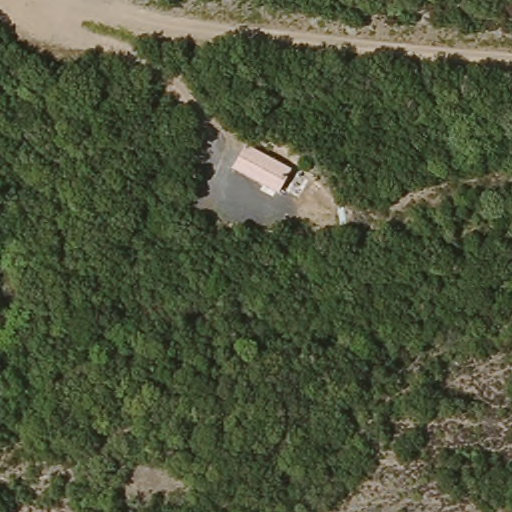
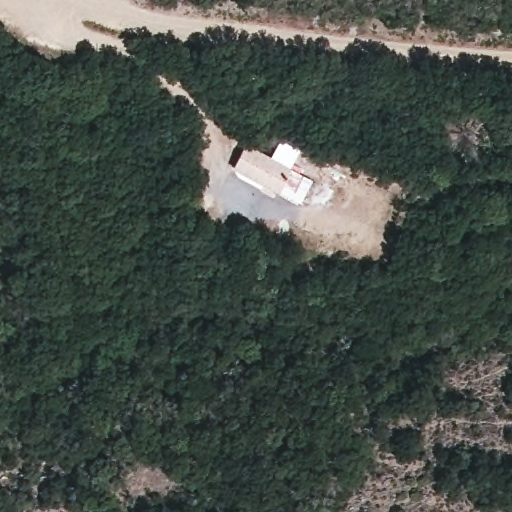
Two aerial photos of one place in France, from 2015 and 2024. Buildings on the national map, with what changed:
unchanged [(244,145),(290,170),(278,193),(231,169),(244,145)]

